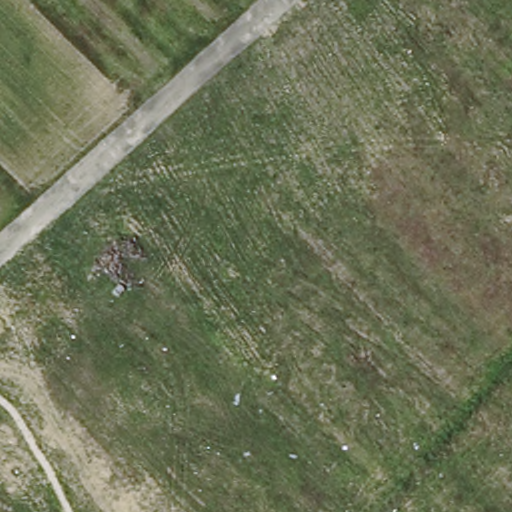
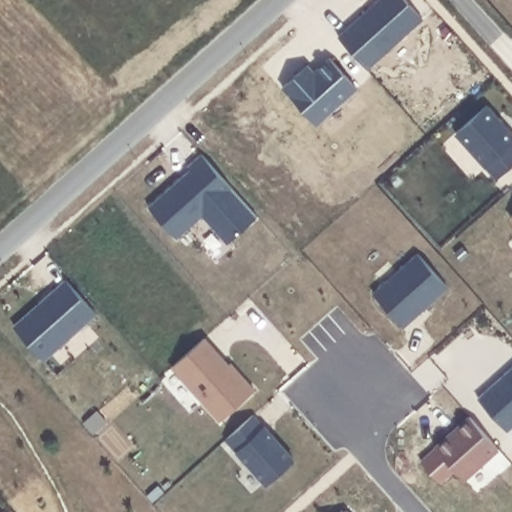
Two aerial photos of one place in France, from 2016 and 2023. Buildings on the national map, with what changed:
new [(405,0),(422,20),(367,70),(338,38),(380,0),(405,0)]
new [(308,66),(312,70),(315,75),(331,60),(357,89),(316,125),(283,89),(299,75),(308,66)]
new [(490,105),(512,132),(512,164),(495,178),(483,165),(457,134),(490,105)]
new [(191,170),(187,166),(202,155),(257,216),(227,244),(202,215),(177,238),(150,206),(191,170)]
new [(512,214),(512,218),(510,216),(512,214)]
new [(419,255),(448,287),(403,327),(374,294),(419,255)]
new [(65,280),(95,313),(44,359),(12,323),(65,280)]
new [(206,337),(230,364),(232,362),(255,388),(220,420),(172,367),(206,337)]
new [(512,368),(512,427),(508,431),(479,397),(512,368)]
new [(252,415),(263,428),(264,427),(294,460),(267,485),(226,439),(252,415)]
new [(470,417),(497,450),(465,480),(437,447),(470,417)]
new [(346,511),(347,512),(345,512),(346,511)]

